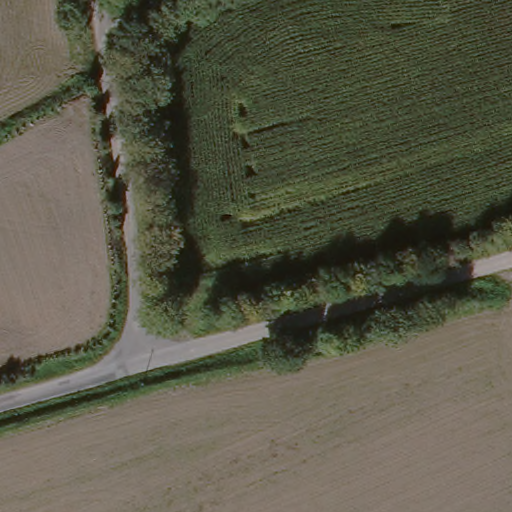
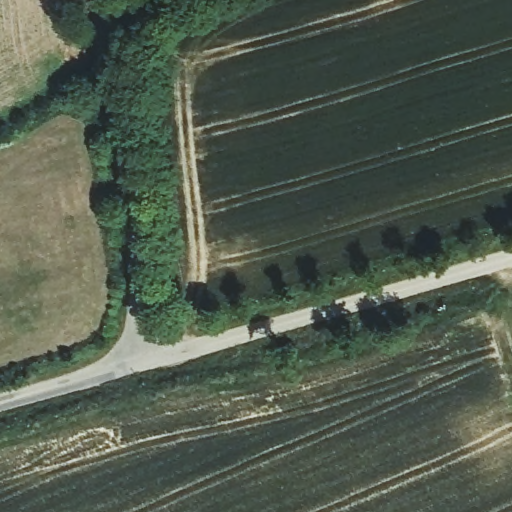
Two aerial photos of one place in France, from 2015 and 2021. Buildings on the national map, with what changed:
[]

